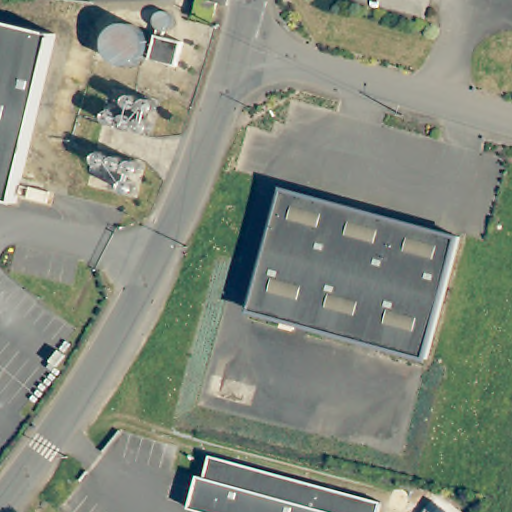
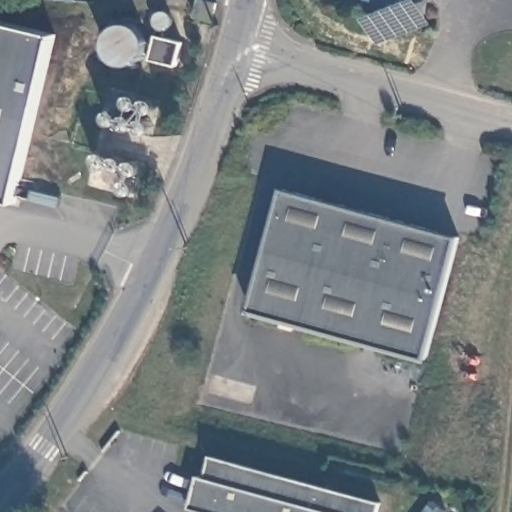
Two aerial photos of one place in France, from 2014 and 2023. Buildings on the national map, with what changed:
unchanged [(214,21),(195,17),(200,0),(203,0),(217,4),(214,21)]
unchanged [(61,26),(30,158),(22,194),(0,189),(0,12),(61,26)]
unchanged [(458,235),(428,356),(250,311),(282,191),(458,235)]
unchanged [(385,512),(209,512),(195,508),(204,475),(210,477),(216,455),(387,502),(385,512)]

